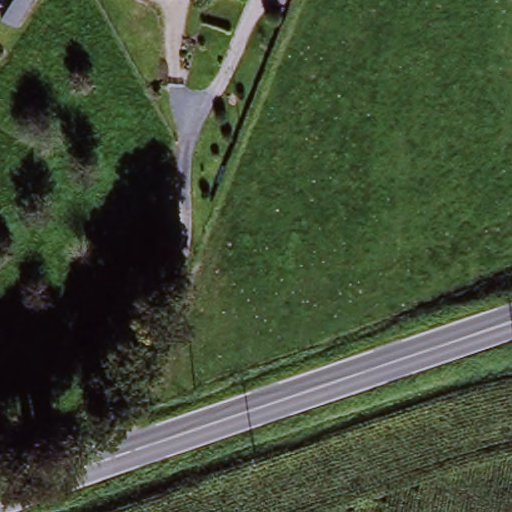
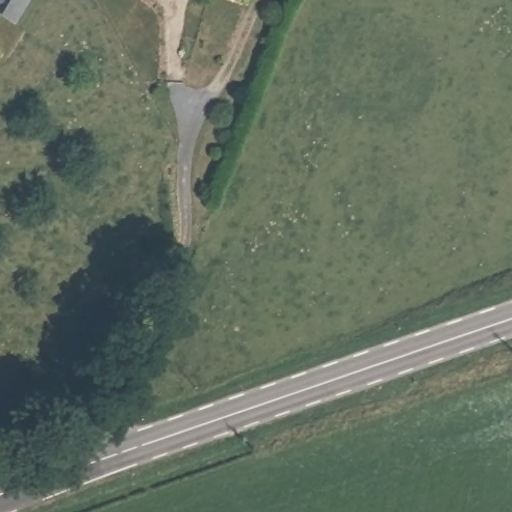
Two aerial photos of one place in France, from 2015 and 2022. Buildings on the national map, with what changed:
unchanged [(5,14),(0,10),(0,7),(1,5),(0,4),(0,0),(28,0),(15,20),(5,14)]

